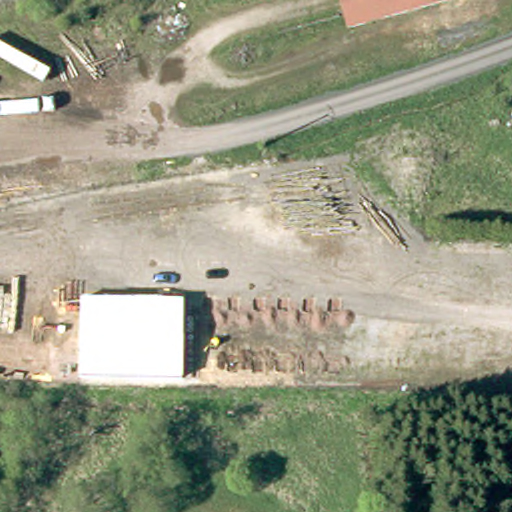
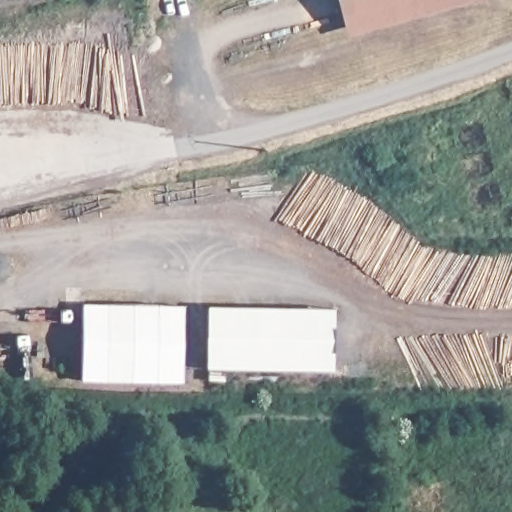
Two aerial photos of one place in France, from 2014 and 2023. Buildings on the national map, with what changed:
unchanged [(337,0),(479,0),(348,36),(337,0)]
unchanged [(184,383),(81,382),(82,304),(184,305),(184,383)]
new [(335,309),(334,370),(208,368),(209,308),(335,309)]

